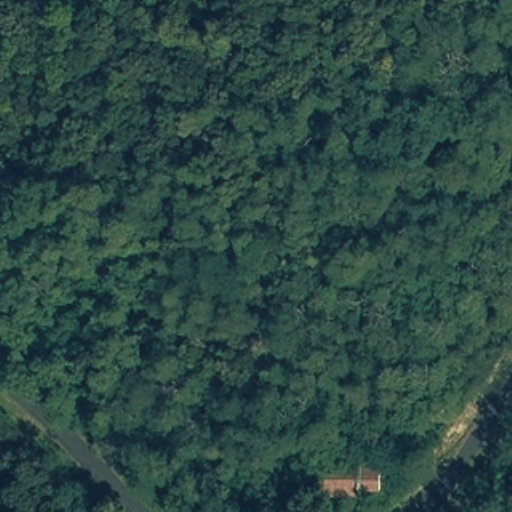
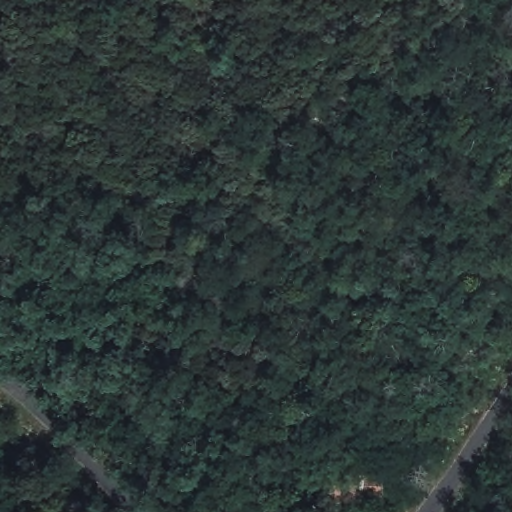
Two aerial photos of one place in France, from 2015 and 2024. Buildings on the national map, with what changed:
unchanged [(321,472),(387,472),(387,498),(367,498),(367,507),(321,506),(321,472)]

